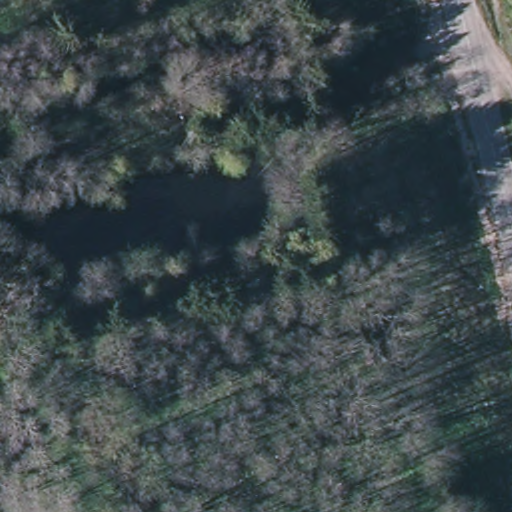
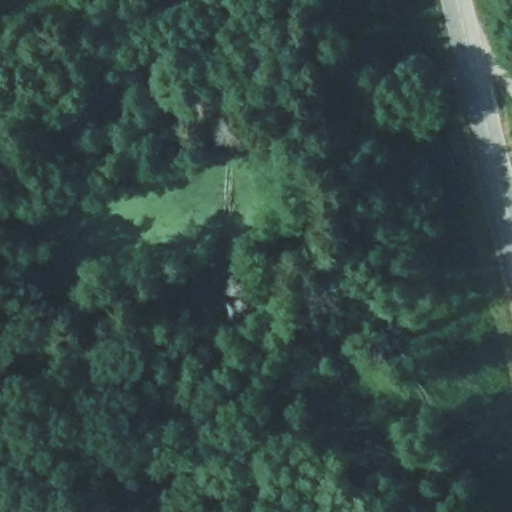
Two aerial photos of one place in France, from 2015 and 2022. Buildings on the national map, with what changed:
unchanged [(380,316),(395,356),(373,364),(357,325),(380,316)]

